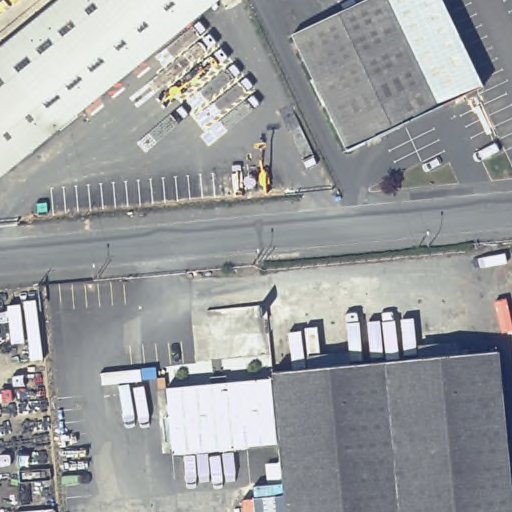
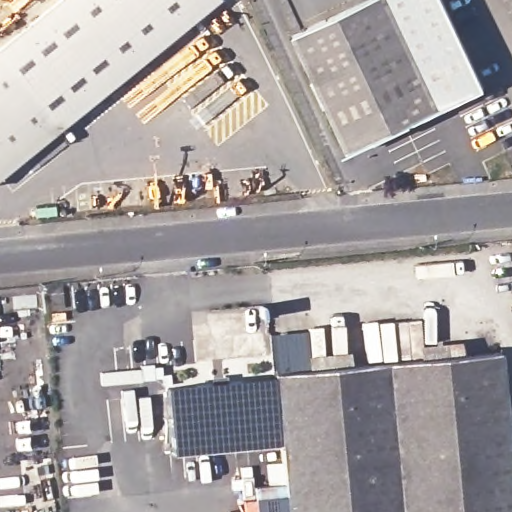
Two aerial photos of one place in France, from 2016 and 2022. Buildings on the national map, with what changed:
unchanged [(55,130),(0,62),(0,47),(58,0),(216,0),(55,130)]
unchanged [(380,0),(444,0),(486,91),(351,154),(297,38),(380,0)]
unchanged [(0,175),(0,62),(55,130),(0,175)]
unchanged [(498,356),(512,494),(512,512),(285,512),(272,377),(498,356)]
unchanged [(171,459),(165,393),(270,383),(276,449),(171,459)]

